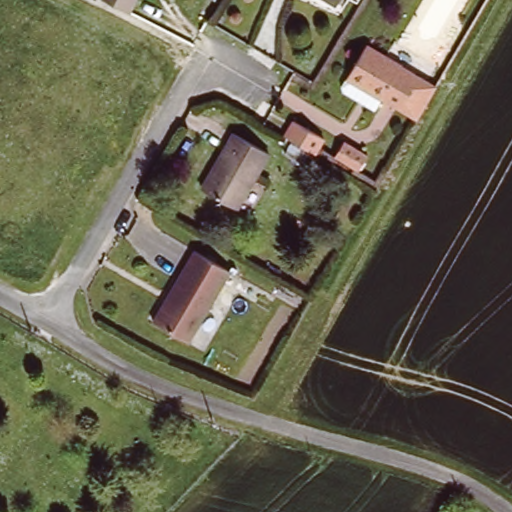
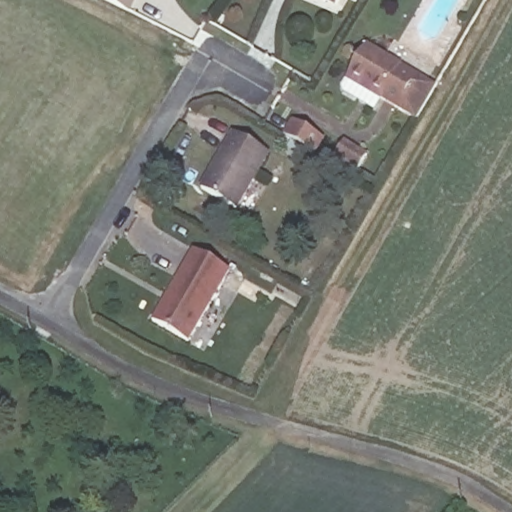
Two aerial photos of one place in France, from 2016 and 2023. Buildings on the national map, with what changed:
unchanged [(127,0),(129,1),(122,13),(98,0),(127,0)]
unchanged [(326,0),(340,0),(337,6),(326,0)]
unchanged [(347,81),(367,48),(419,79),(437,90),(417,124),(398,112),(347,81)]
unchanged [(281,136),(290,121),(322,140),(312,152),(281,136)]
unchanged [(267,152),(236,211),(201,191),(232,133),(267,152)]
unchanged [(227,272),(187,344),(150,323),(191,251),(227,272)]

